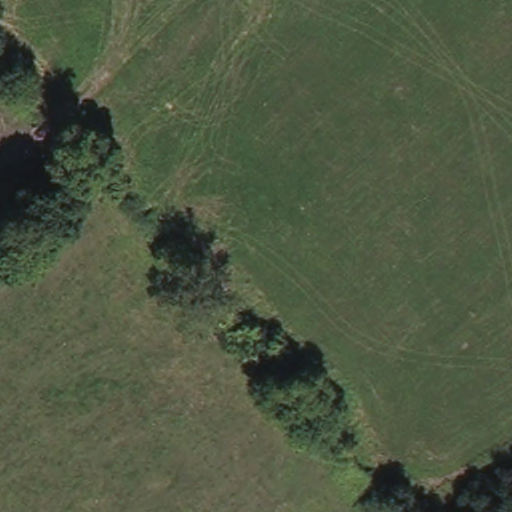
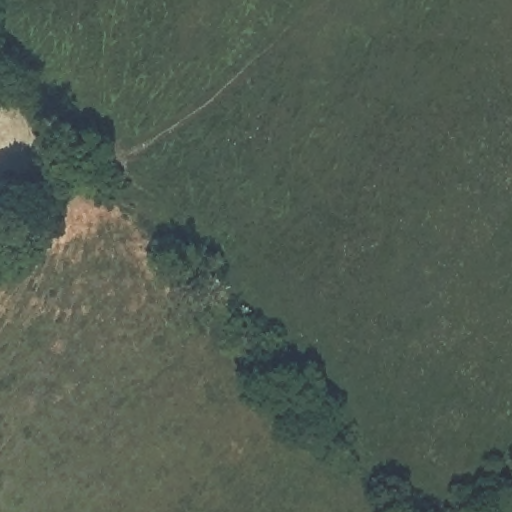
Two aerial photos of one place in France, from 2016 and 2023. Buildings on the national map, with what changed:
[]

